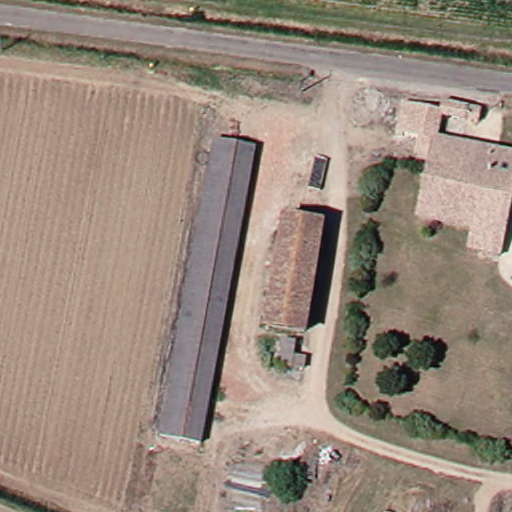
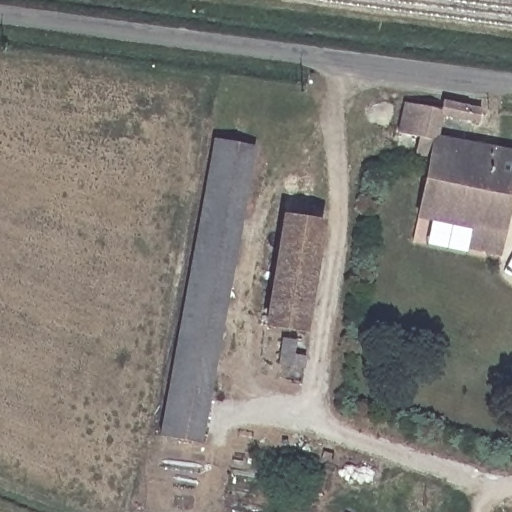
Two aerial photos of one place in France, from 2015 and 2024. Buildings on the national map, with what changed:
unchanged [(451,114),(446,143),(512,155),(512,203),(429,188),(433,147),(426,139),(402,135),(410,104),(443,110),(443,98),(472,102),(471,116),(451,114)]
unchanged [(207,441),(167,434),(219,142),(261,147),(207,441)]
unchanged [(426,215),(429,188),(512,203),(512,228),(454,219),(426,215)]
unchanged [(331,223),(307,339),(272,329),(294,216),(331,223)]
unchanged [(454,219),(512,228),(512,255),(450,248),(454,219)]

